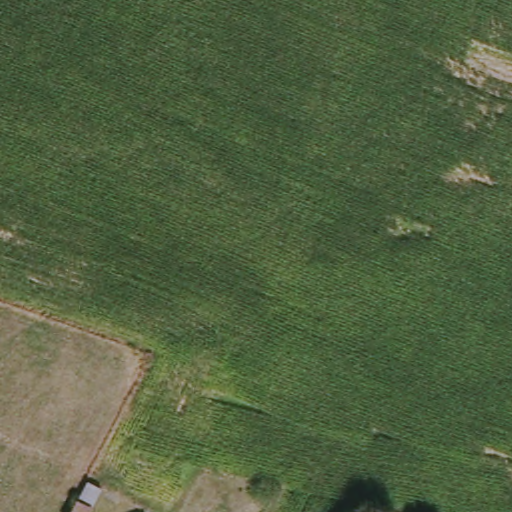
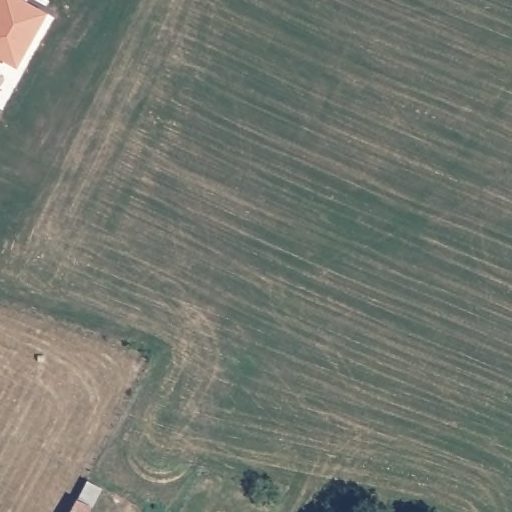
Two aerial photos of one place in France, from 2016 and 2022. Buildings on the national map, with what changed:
new [(4,0),(17,0),(48,17),(18,69),(0,59),(0,7),(4,0)]
unchanged [(82,490),(73,512),(58,512),(71,485),(82,490)]

